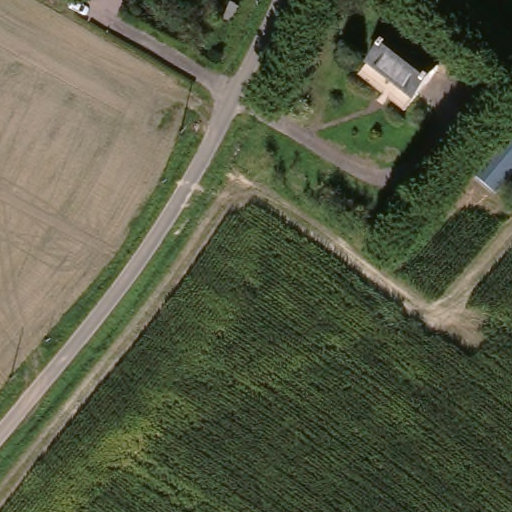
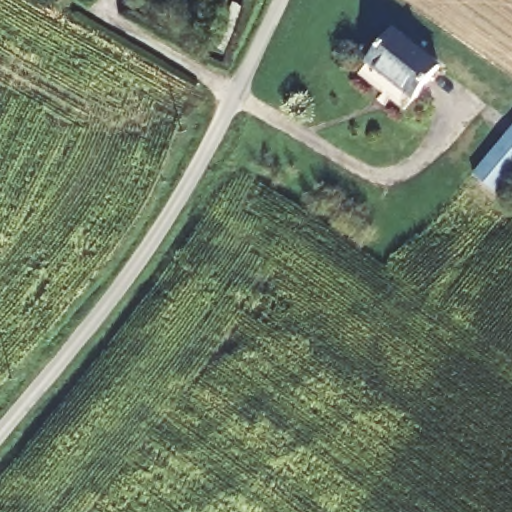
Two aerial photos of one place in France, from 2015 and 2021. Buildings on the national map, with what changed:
unchanged [(199,32),(212,39),(222,20),(232,25),(217,54),(194,42),(199,32)]
unchanged [(363,69),(386,36),(432,70),(407,101),(363,69)]
unchanged [(472,170),(512,128),(512,176),(496,194),(472,170)]

